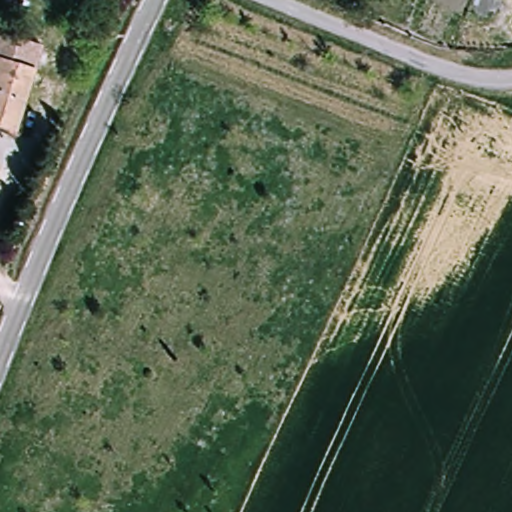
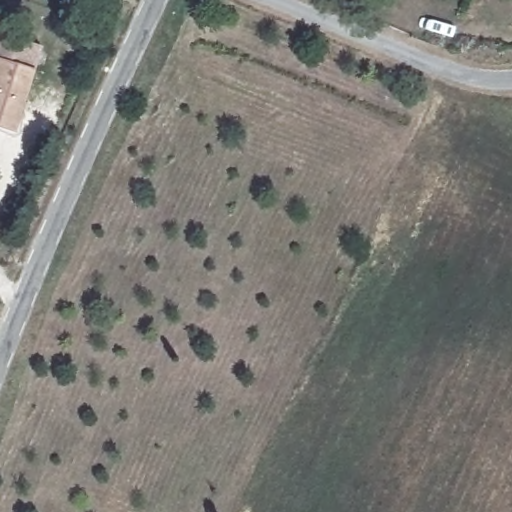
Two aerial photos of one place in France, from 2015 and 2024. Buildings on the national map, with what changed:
unchanged [(0,126),(0,64),(2,57),(0,56),(0,33),(1,30),(47,45),(25,114),(19,132),(10,129),(0,126)]

